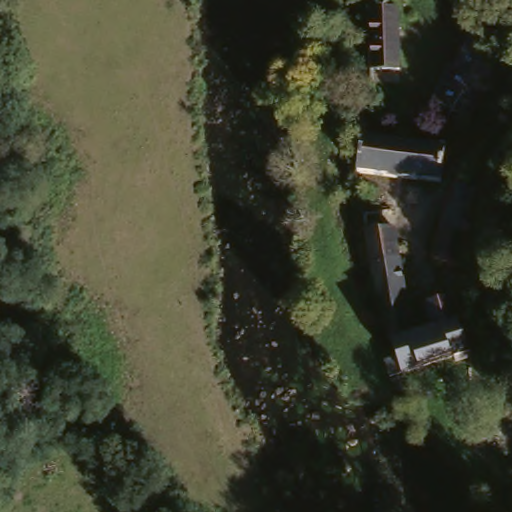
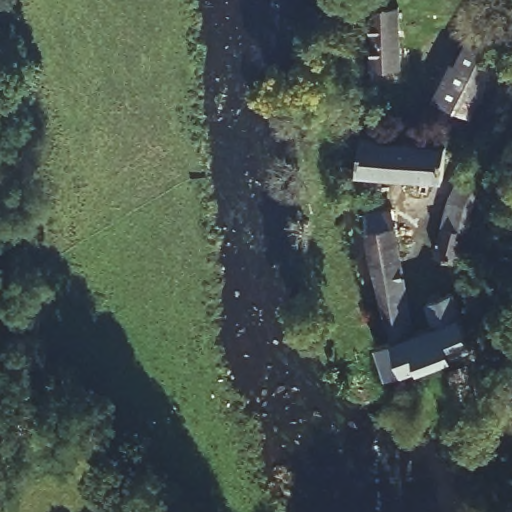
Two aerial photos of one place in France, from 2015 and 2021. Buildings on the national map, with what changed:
unchanged [(388,11),(391,70),(363,71),(359,11),(388,11)]
unchanged [(450,70),(468,34),(500,50),(483,86),(450,70)]
unchanged [(466,122),(433,106),(450,70),(483,86),(466,122)]
unchanged [(363,141),(446,150),(443,183),(359,174),(363,141)]
unchanged [(458,183),(474,192),(468,210),(464,220),(463,234),(468,237),(463,263),(437,259),(449,203),(458,183)]
unchanged [(368,265),(361,216),(387,207),(396,262),(368,265)]
unchanged [(380,361),(393,358),(368,265),(396,262),(409,333),(425,329),(423,304),(448,299),(465,352),(397,374),(388,379),(380,361)]

